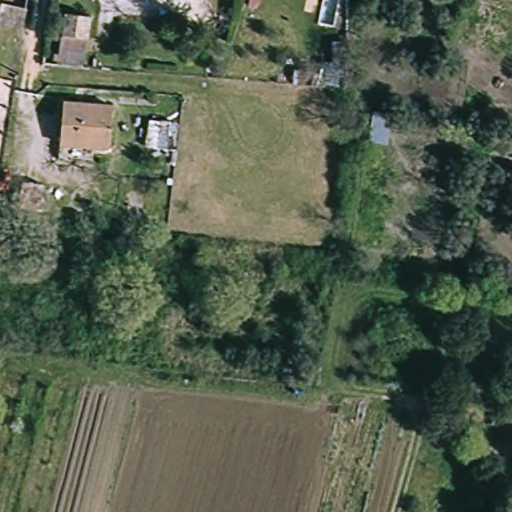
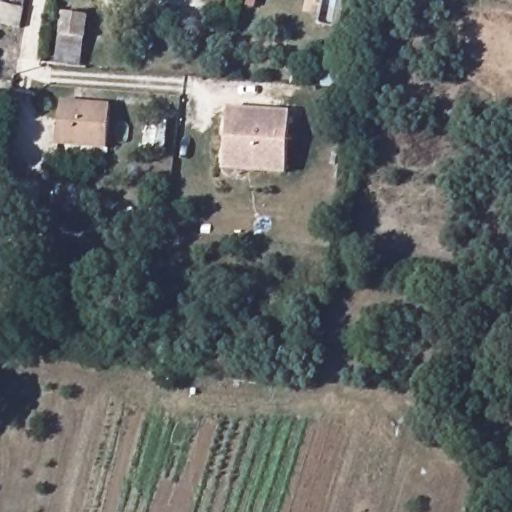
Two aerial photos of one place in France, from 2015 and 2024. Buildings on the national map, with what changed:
unchanged [(26,10),(23,30),(0,26),(0,6),(26,10)]
unchanged [(55,28),(81,31),(79,52),(53,49),(55,28)]
new [(291,86),(292,73),(318,75),(318,61),(330,62),(331,42),(345,42),(343,89),(291,86)]
unchanged [(58,108),(106,113),(104,145),(55,141),(58,108)]
new [(287,176),(223,172),(227,108),(289,113),(287,176)]

